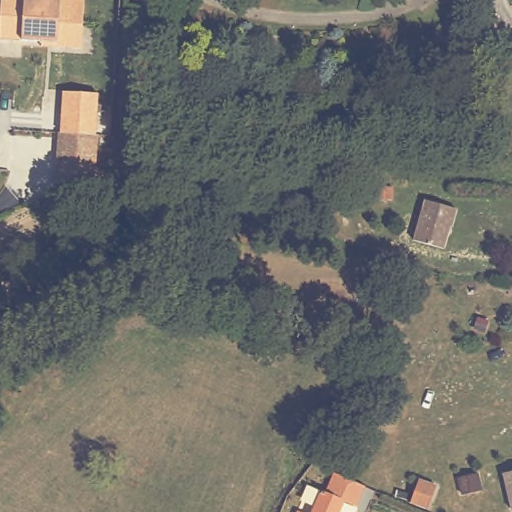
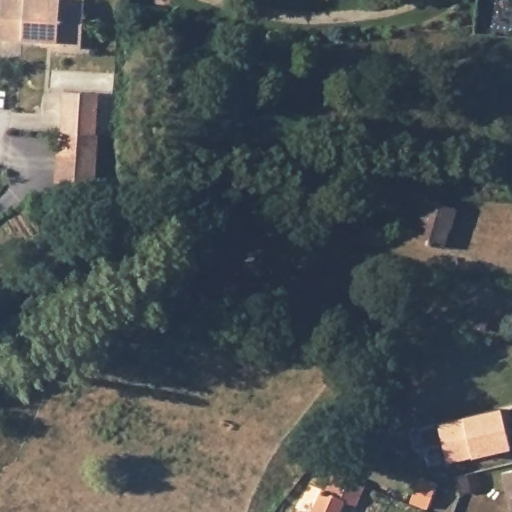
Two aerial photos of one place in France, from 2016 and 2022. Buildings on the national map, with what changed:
unchanged [(42,41),(0,38),(3,0),(80,0),(86,0),(82,49),(57,47),(42,46),(42,41)]
unchanged [(57,131),(60,105),(60,90),(95,93),(95,108),(93,134),(90,182),(60,180),(54,179),(55,169),(57,131)]
unchanged [(453,212),(440,250),(410,240),(422,202),(453,212)]
new [(503,410),(509,434),(512,446),(512,448),(451,462),(447,448),(427,452),(422,429),(442,424),(498,411),(503,410)]
unchanged [(512,512),(510,512),(501,474),(512,472),(512,512)]
unchanged [(476,474),(480,489),(460,493),(456,479),(476,474)]
unchanged [(323,493),(330,476),(362,489),(355,509),(342,504),(339,512),(310,512),(318,491),(323,493)]
unchanged [(418,479),(435,486),(427,509),(410,502),(418,479)]
unchanged [(295,512),(292,512),(292,511),(295,512)]

